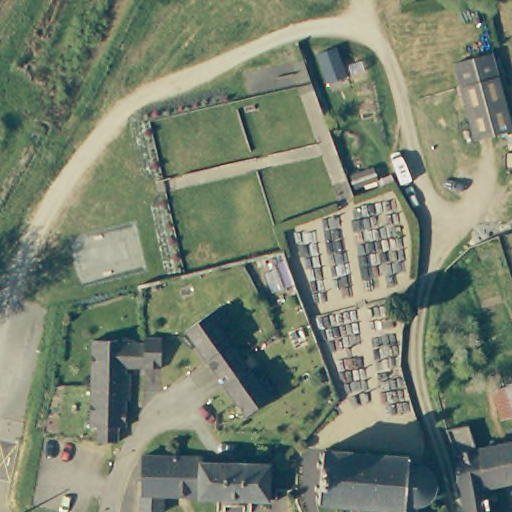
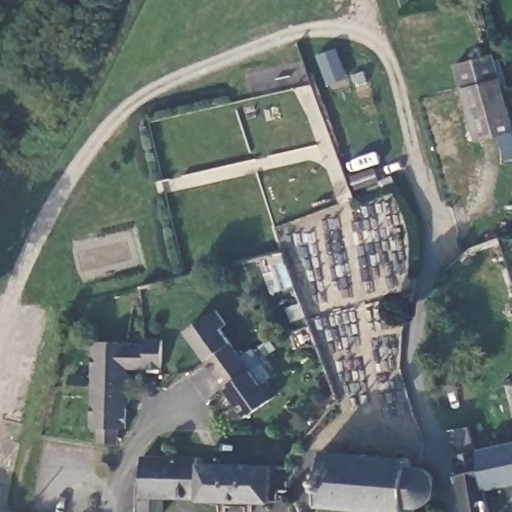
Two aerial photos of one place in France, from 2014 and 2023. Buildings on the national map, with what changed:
unchanged [(315,50),(341,40),(352,76),(331,85),(315,50)]
unchanged [(512,132),(512,134),(475,141),(461,91),(455,67),(496,59),(501,80),(512,132)]
unchanged [(222,325),(257,387),(263,383),(272,398),(240,418),(185,328),(219,307),(229,321),(222,325)]
unchanged [(124,370),(128,371),(125,401),(123,401),(120,429),(113,428),(112,446),(94,445),(93,445),(94,427),(88,427),(95,333),(128,335),(128,330),(145,331),(165,333),(162,366),(149,365),(125,364),(124,370)]
unchanged [(509,416),(500,383),(512,380),(512,416),(509,416)]
unchanged [(447,430),(472,425),(476,445),(512,436),(512,477),(483,484),(489,512),(463,512),(451,451),(447,430)]
unchanged [(511,425),(512,425),(512,428),(511,425)]
unchanged [(425,465),(430,467),(433,471),(436,476),(436,482),(435,488),(431,492),(426,495),(420,497),(419,512),(384,512),(384,510),(351,507),(320,505),(326,448),(423,453),(422,465),(425,465)]
unchanged [(236,502),(236,493),(221,493),(221,484),(181,485),(182,512),(159,512),(159,485),(159,465),(164,465),(164,457),(171,457),(217,456),(217,461),(286,460),(286,495),(271,495),(271,501),(236,502)]

